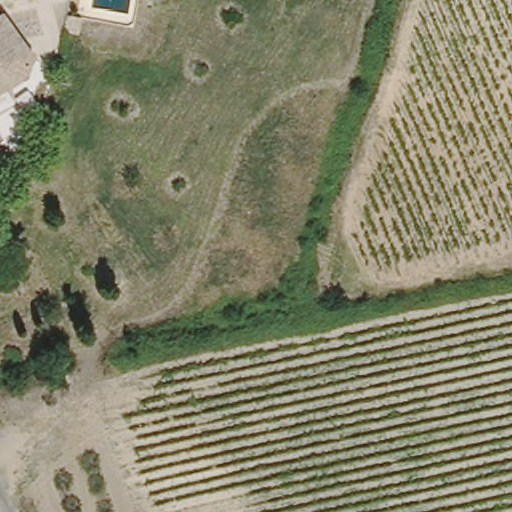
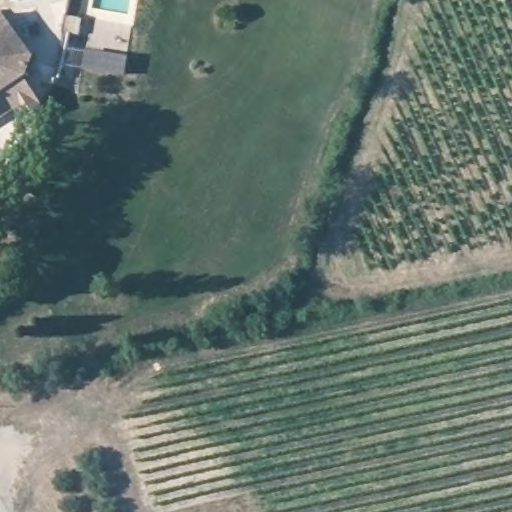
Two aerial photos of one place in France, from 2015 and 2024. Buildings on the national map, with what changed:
unchanged [(0,25),(5,22),(33,65),(18,92),(0,100),(0,25)]
new [(67,48),(128,56),(126,77),(64,69),(67,48)]

